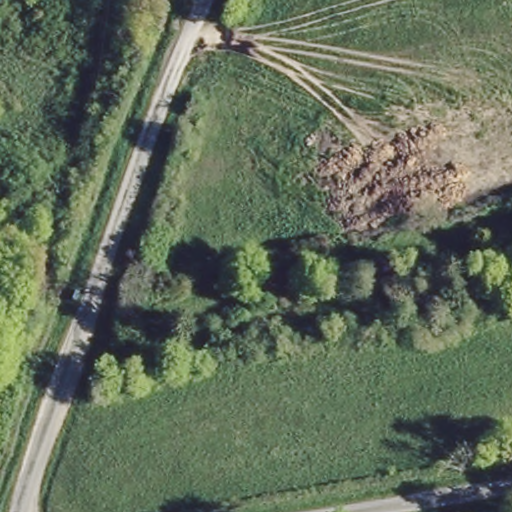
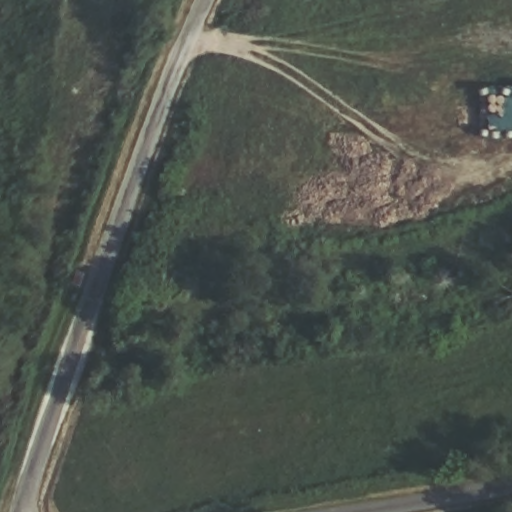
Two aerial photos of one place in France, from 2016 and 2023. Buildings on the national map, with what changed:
unchanged [(395,293),(422,288),(425,302),(399,307),(395,293)]

